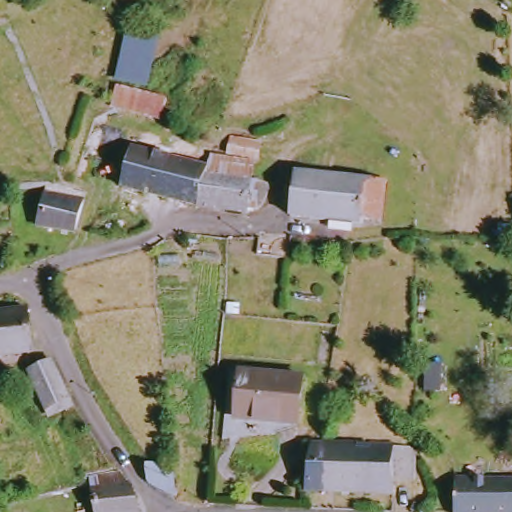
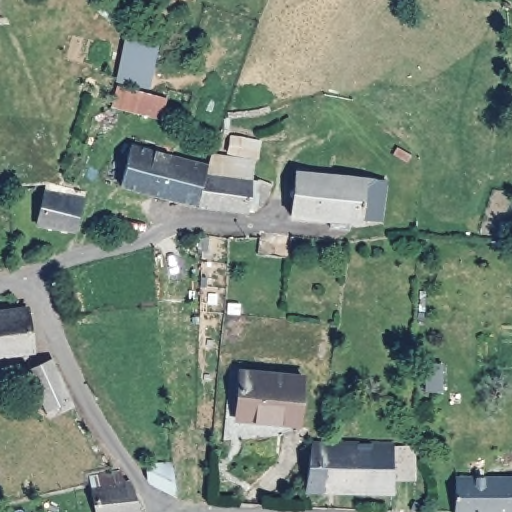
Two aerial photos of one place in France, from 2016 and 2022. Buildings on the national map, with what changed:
unchanged [(119,82),(129,35),(159,39),(148,87),(119,82)]
unchanged [(115,110),(119,92),(168,102),(165,119),(115,110)]
unchanged [(266,156),(235,152),(237,135),(269,141),(266,156)]
unchanged [(207,183),(203,206),(123,187),(135,153),(211,172),(207,183)]
unchanged [(367,219),(367,223),(296,217),(303,171),(391,182),(388,221),(367,219)]
unchanged [(203,206),(207,183),(211,172),(259,180),(277,185),(269,204),(261,209),(253,207),(252,213),(203,206)]
unchanged [(86,197),(81,231),(39,226),(48,192),(86,197)]
unchanged [(33,308),(33,310),(38,351),(0,356),(0,313),(33,308)]
unchanged [(53,417),(32,372),(54,362),(75,407),(53,417)]
unchanged [(236,417),(245,370),(306,381),(299,427),(236,417)]
unchanged [(313,436),(325,436),(418,441),(417,470),(400,470),(399,490),(311,487),(313,436)]
unchanged [(148,481),(146,466),(174,462),(178,498),(148,481)]
unchanged [(130,476),(132,487),(141,487),(148,512),(104,512),(99,488),(98,482),(130,476)]
unchanged [(464,478),(512,479),(512,512),(459,512),(462,478),(464,478)]

